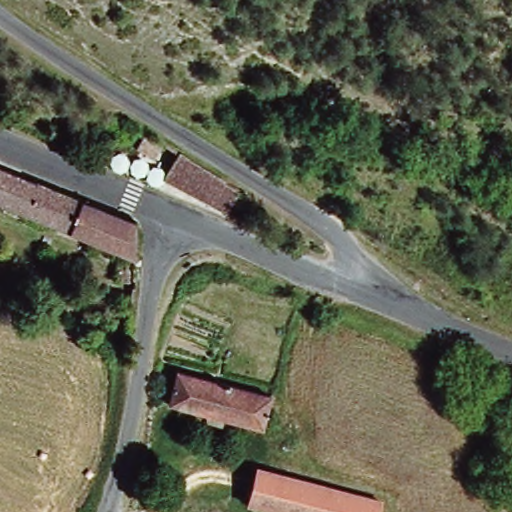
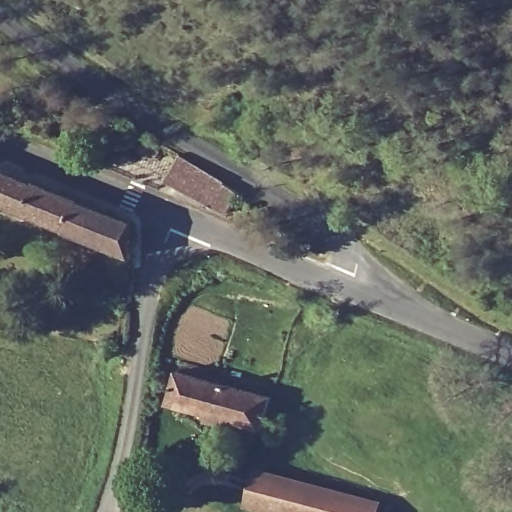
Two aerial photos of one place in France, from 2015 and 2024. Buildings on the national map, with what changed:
unchanged [(246,197),(236,216),(170,182),(183,157),(246,197)]
unchanged [(132,224),(132,260),(0,204),(0,171),(132,224)]
unchanged [(264,428),(173,404),(181,373),(272,398),(264,428)]
unchanged [(249,502),(258,469),(382,502),(379,512),(285,512),(249,502)]

